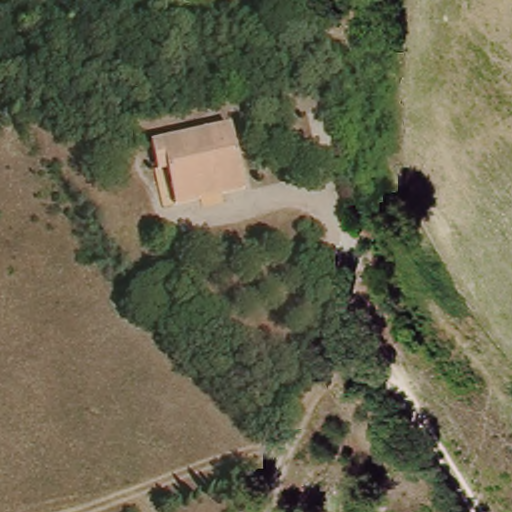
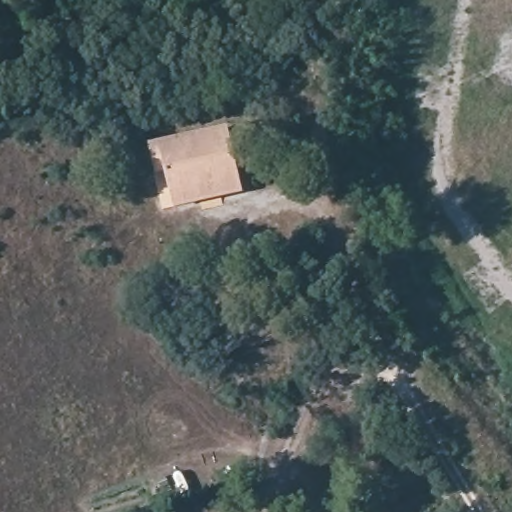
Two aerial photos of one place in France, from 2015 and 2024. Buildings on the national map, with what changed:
unchanged [(165,174),(157,175),(152,149),(227,128),(239,175),(171,192),(165,174)]
unchanged [(243,191),(175,208),(171,192),(239,175),(243,191)]

